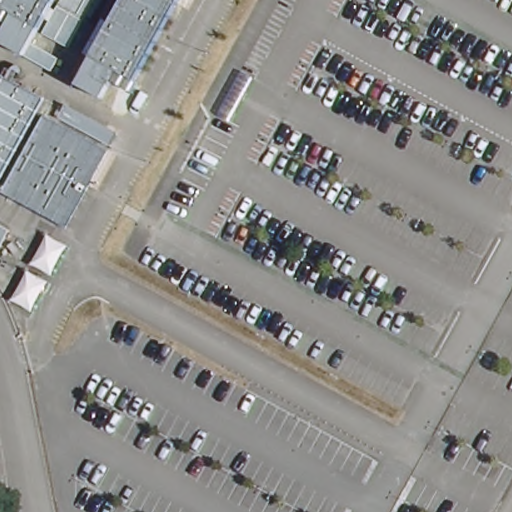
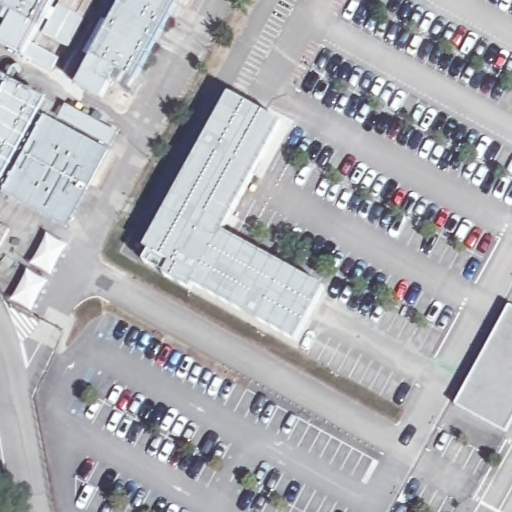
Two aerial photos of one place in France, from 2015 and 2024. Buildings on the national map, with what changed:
unchanged [(61,58),(54,69),(0,40),(0,35),(13,11),(0,4),(0,0),(53,0),(30,41),(61,58)]
unchanged [(42,31),(59,0),(93,0),(67,45),(42,31)]
unchanged [(117,69),(102,96),(76,82),(121,0),(178,0),(135,79),(117,69)]
unchanged [(36,114),(0,179),(0,80),(42,103),(36,114)]
new [(147,251),(142,248),(227,91),(281,120),(222,230),(325,287),(295,343),(192,285),(189,290),(142,260),(147,251)]
unchanged [(102,147),(61,229),(0,196),(0,179),(36,114),(102,147)]
new [(0,225),(10,230),(0,248),(0,225)]
new [(510,305),(512,306),(512,417),(504,433),(454,406),(510,305)]

